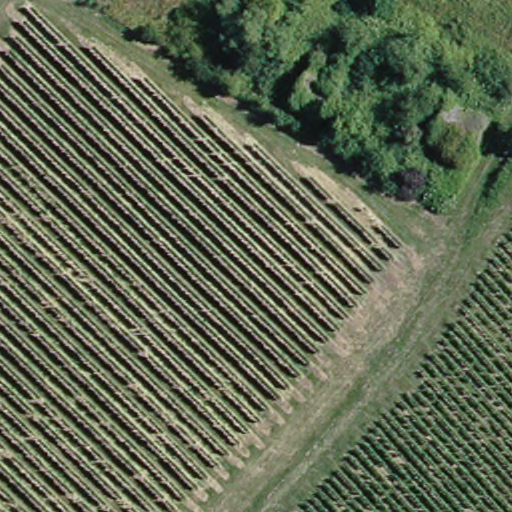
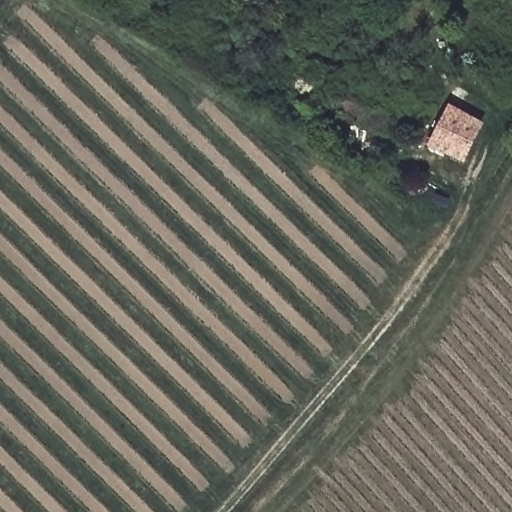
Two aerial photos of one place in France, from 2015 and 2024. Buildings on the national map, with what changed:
new [(430,146),(450,106),(482,122),(462,162),(430,146)]

